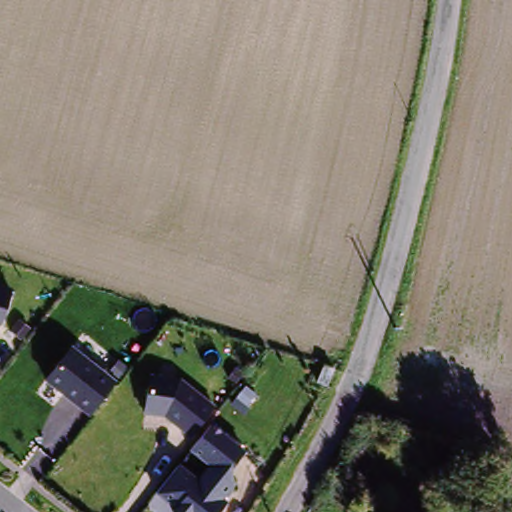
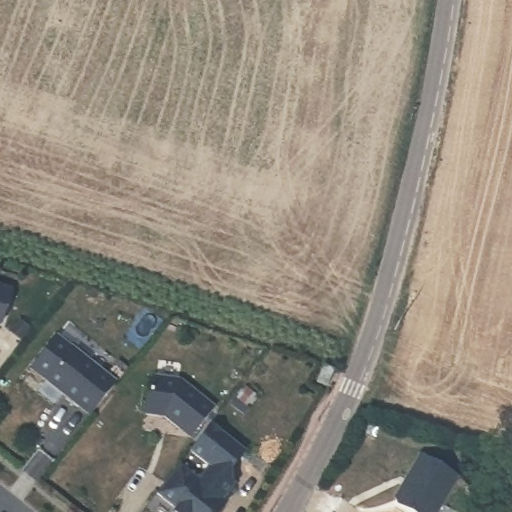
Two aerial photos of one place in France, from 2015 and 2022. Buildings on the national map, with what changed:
unchanged [(0,287),(10,291),(0,324),(0,287)]
unchanged [(89,418),(43,382),(70,348),(115,383),(89,418)]
unchanged [(189,439),(164,418),(144,414),(148,383),(155,377),(179,379),(213,407),(189,439)]
unchanged [(206,479),(217,467),(196,448),(217,422),(250,449),(229,478),(241,489),(224,512),(179,512),(161,497),(187,466),(206,479)]
new [(455,477),(436,512),(407,512),(392,503),(417,456),(455,477)]
demolished [(363,512),(369,496),(412,512),(363,512)]

